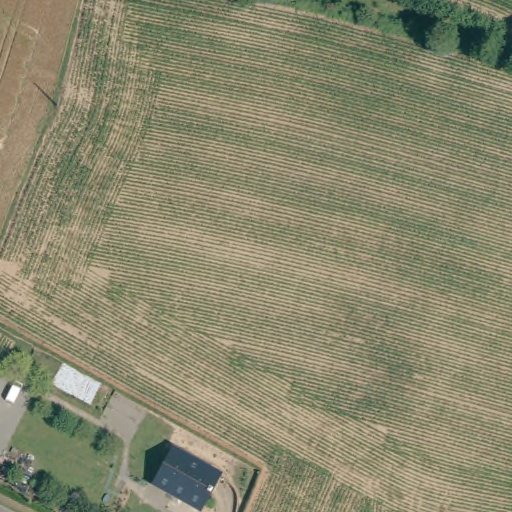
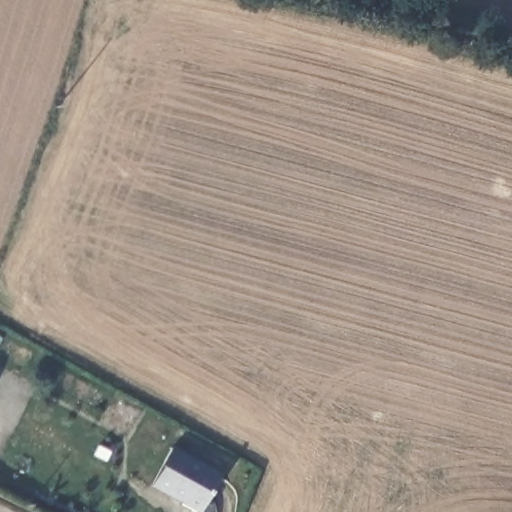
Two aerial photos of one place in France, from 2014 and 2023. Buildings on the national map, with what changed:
unchanged [(218,471),(197,509),(149,479),(172,443),(218,471)]

